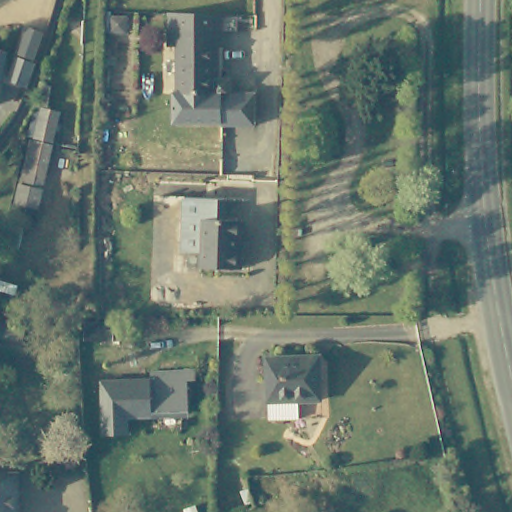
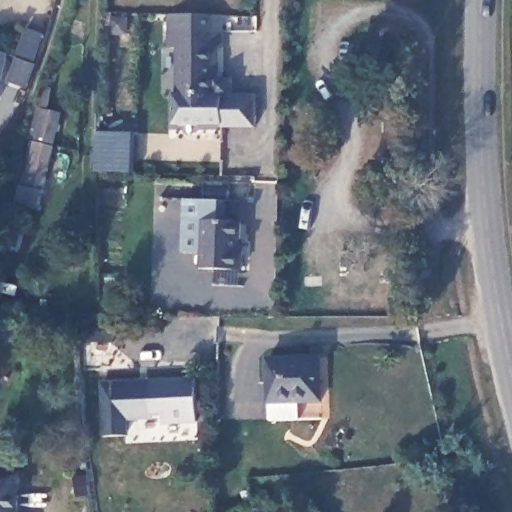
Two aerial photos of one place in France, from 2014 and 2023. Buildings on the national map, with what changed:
unchanged [(228,40),(224,40),(224,59),(221,59),(220,87),(184,86),(186,39),(175,39),(176,22),(229,24),(228,40)]
unchanged [(220,95),(256,94),(255,126),(221,127),(171,124),(172,91),(174,91),(175,39),(186,39),(184,86),(220,87),(220,78),(220,95)]
unchanged [(0,94),(0,50),(9,53),(0,94)]
unchanged [(31,178),(40,143),(47,113),(65,117),(57,148),(49,183),(31,178)]
new [(134,173),(92,172),(94,132),(134,133),(134,173)]
unchanged [(42,214),(20,209),(25,189),(46,195),(42,214)]
unchanged [(203,224),(202,252),(181,252),(184,198),(226,199),(227,225),(203,224)]
unchanged [(17,249),(7,246),(11,224),(22,227),(17,249)]
unchanged [(246,255),(246,271),(202,270),(203,224),(240,225),(239,244),(246,244),(246,255)]
unchanged [(22,341),(0,336),(0,322),(25,328),(22,341)]
unchanged [(269,419),(268,358),(320,356),(321,400),(300,401),(300,418),(269,419)]
unchanged [(150,418),(149,378),(194,377),(194,384),(186,384),(187,417),(150,418)]
unchanged [(150,418),(127,418),(128,436),(102,436),(100,380),(149,378),(150,418)]
unchanged [(0,512),(0,475),(16,475),(15,512),(0,512)]

